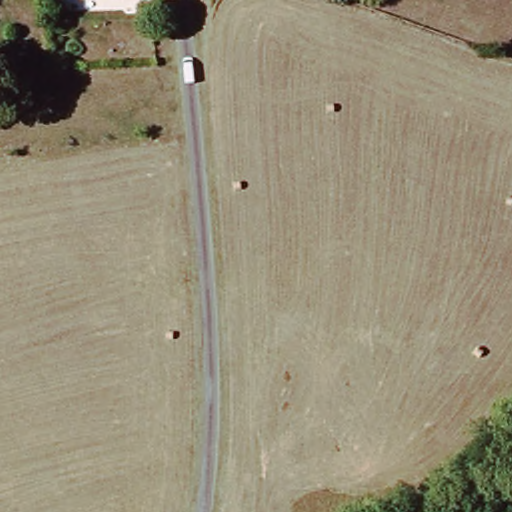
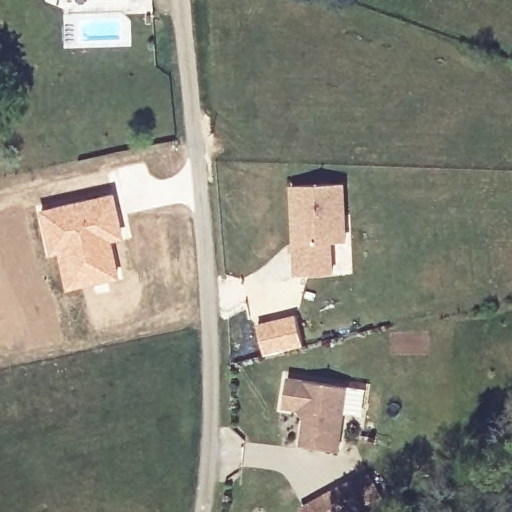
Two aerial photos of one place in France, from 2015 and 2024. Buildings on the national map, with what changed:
new [(347,216),(348,243),(333,244),(335,275),(300,277),(295,188),(345,185),(347,216)]
new [(113,191),(122,238),(112,239),(118,277),(65,288),(57,254),(47,256),(36,208),(113,191)]
new [(350,385),(340,451),(302,446),(304,420),(296,411),(282,409),(287,376),(350,385)]
new [(379,500),(356,512),(329,512),(320,496),(364,473),(379,500)]

